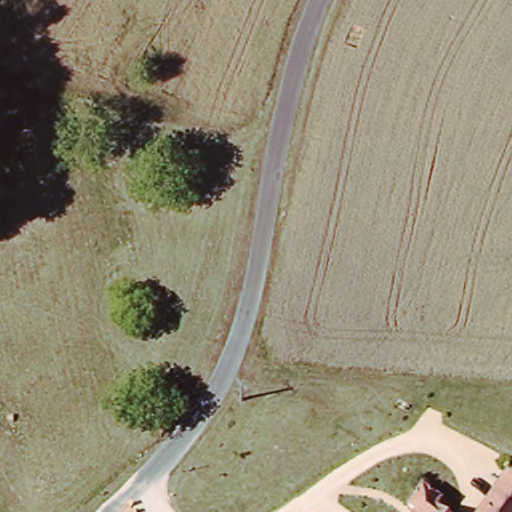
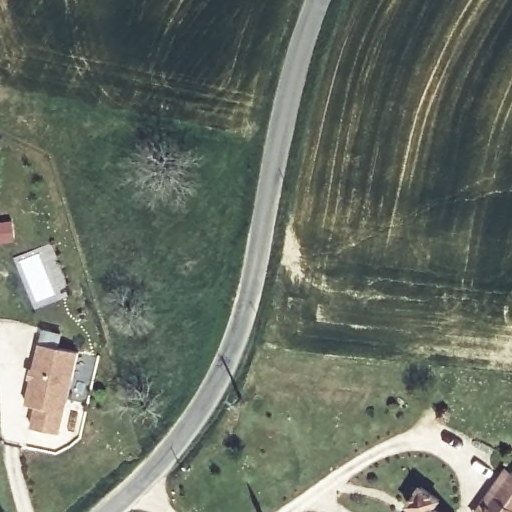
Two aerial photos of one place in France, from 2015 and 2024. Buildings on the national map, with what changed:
new [(80,352),(60,434),(32,428),(36,406),(25,404),(39,343),(80,352)]
unchanged [(478,512),(509,469),(512,471),(512,512),(478,512)]
unchanged [(414,504),(428,485),(446,499),(440,506),(447,512),(415,512),(419,507),(414,504)]

